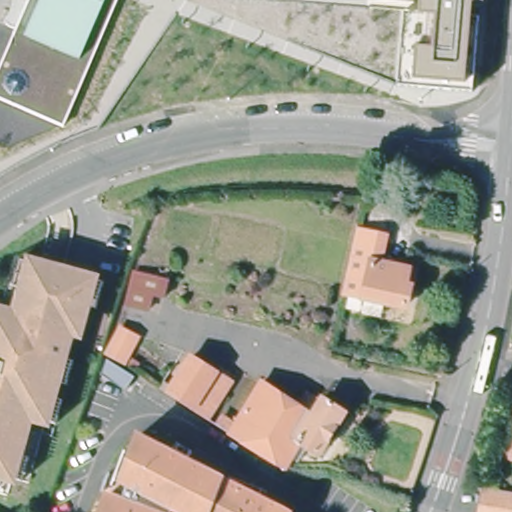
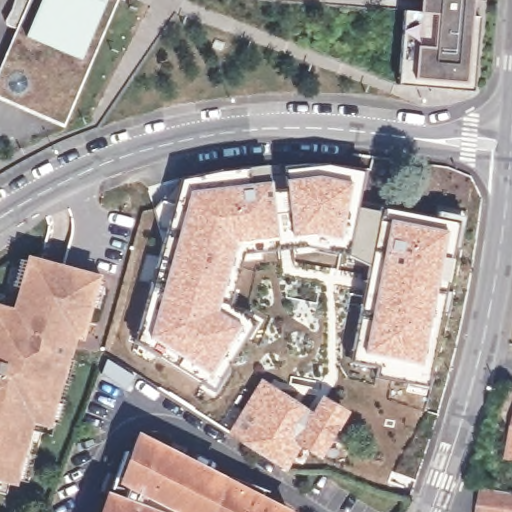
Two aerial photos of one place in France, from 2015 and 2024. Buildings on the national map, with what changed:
unchanged [(0,101),(0,66),(28,0),(119,0),(62,127),(0,101)]
unchanged [(475,2),(473,17),(479,16),(472,90),(398,84),(403,11),(422,11),(423,0),(484,0),(484,2),(475,2)]
new [(161,252),(172,204),(178,179),(217,171),(254,166),(325,165),(362,171),(356,206),(380,210),(368,265),(324,250),(300,247),(277,248),(244,256),(231,306),(245,312),(244,313),(252,320),(251,324),(254,326),(212,394),(135,342),(161,252)]
new [(353,338),(368,265),(380,210),(381,210),(381,207),(437,217),(437,211),(460,215),(448,272),(436,320),(424,383),(373,375),(375,366),(350,360),(353,338)]
demolished [(394,242),(387,270),(402,274),(398,291),(405,292),(400,312),(358,301),(363,282),(353,280),(365,236),(394,242)]
unchanged [(15,312),(21,286),(11,283),(17,257),(28,260),(91,276),(101,278),(94,304),(84,302),(77,330),(69,327),(62,351),(73,353),(67,377),(57,375),(52,390),(63,392),(57,417),(47,414),(30,410),(20,448),(30,451),(24,475),(14,472),(4,470),(2,480),(0,479),(0,309),(15,312)]
demolished [(166,297),(155,297),(150,312),(125,308),(131,271),(167,277),(166,297)]
demolished [(142,333),(128,360),(110,351),(124,324),(142,333)]
demolished [(230,377),(205,419),(166,396),(192,355),(230,377)]
unchanged [(302,438),(288,462),(221,421),(226,413),(240,422),(265,380),(304,402),(311,391),(325,398),(327,395),(348,407),(322,451),(302,438)]
unchanged [(505,407),(512,408),(512,443),(497,440),(505,407)]
unchanged [(118,487),(131,455),(137,457),(145,439),(197,461),(196,464),(241,477),(239,485),(262,494),(265,490),(295,503),(290,512),(108,512),(118,487)]
unchanged [(482,488),(488,490),(512,493),(512,512),(479,512),(482,488)]

